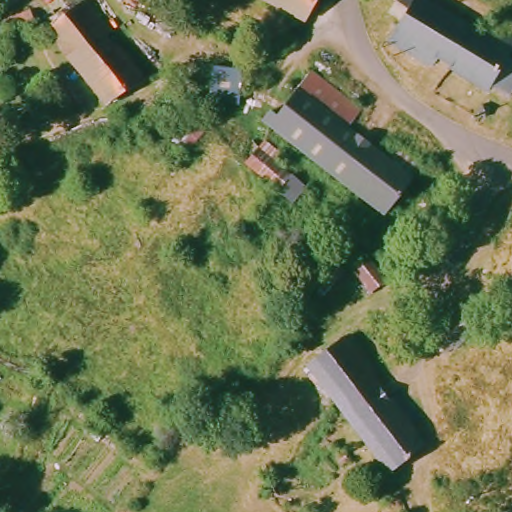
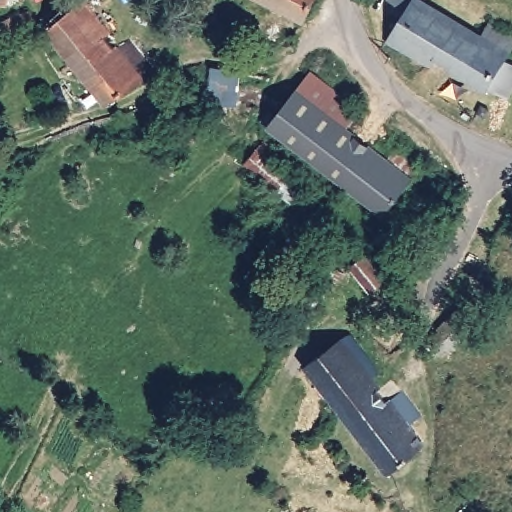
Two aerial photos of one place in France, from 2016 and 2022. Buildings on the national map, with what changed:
unchanged [(3,2),(0,2),(0,0),(3,0),(3,2)]
unchanged [(149,72),(98,105),(36,29),(59,10),(51,0),(77,0),(100,31),(98,32),(107,45),(120,37),(149,72)]
unchanged [(254,0),(313,0),(300,24),(254,0)]
unchanged [(485,32),(494,20),(512,33),(512,52),(510,56),(512,57),(512,89),(509,94),(494,85),(491,89),(439,59),(433,66),(388,40),(408,7),(398,0),(430,0),(485,32)]
unchanged [(30,28),(3,37),(0,28),(0,17),(24,9),(30,28)]
unchanged [(234,102),(206,101),(209,65),(238,68),(234,102)]
unchanged [(361,112),(348,130),(390,162),(398,150),(423,171),(385,217),(263,124),(270,114),(276,119),(298,94),(312,74),(361,112)]
unchanged [(188,113),(202,125),(180,152),(167,139),(188,113)]
unchanged [(255,146),(285,172),(273,187),(242,162),(255,146)]
unchanged [(383,278),(367,291),(346,264),(361,252),(383,278)]
unchanged [(340,271),(323,291),(309,280),(328,260),(340,271)]
unchanged [(436,326),(457,306),(473,328),(452,348),(450,347),(443,352),(434,352),(431,347),(429,340),(430,333),(438,329),(436,326)]
unchanged [(385,475),(303,368),(345,338),(348,339),(376,374),(370,381),(387,402),(398,393),(419,418),(406,428),(422,447),(385,475)]
unchanged [(196,422),(186,440),(175,435),(184,420),(196,422)]

